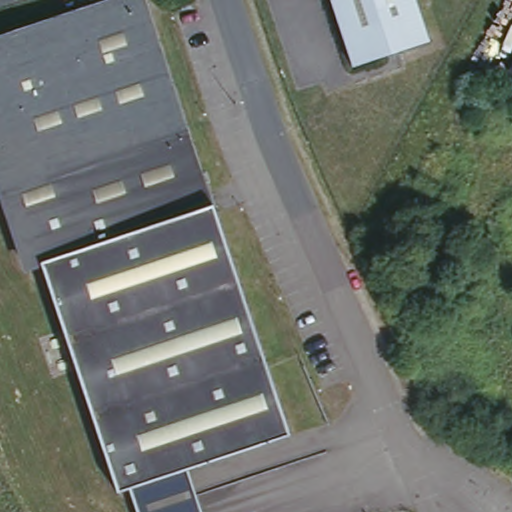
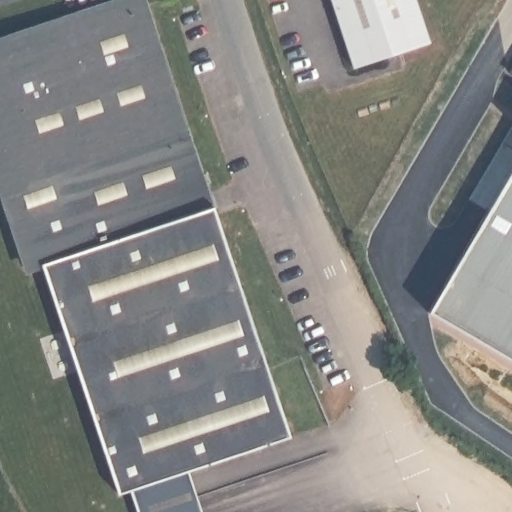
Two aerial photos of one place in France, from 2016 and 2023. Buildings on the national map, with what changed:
unchanged [(176,86),(202,160),(211,187),(217,207),(271,362),(294,429),(192,465),(135,485),(122,488),(46,262),(33,266),(17,222),(0,172),(0,35),(99,0),(146,0),(153,19),(176,86)]
unchanged [(402,50),(387,54),(357,65),(335,0),(420,0),(432,39),(402,50)]
unchanged [(512,59),(512,69),(507,66),(512,59)]
new [(430,312),(491,214),(469,199),(512,126),(512,359),(430,312)]
unchanged [(192,465),(202,491),(209,512),(144,512),(135,485),(192,465)]

